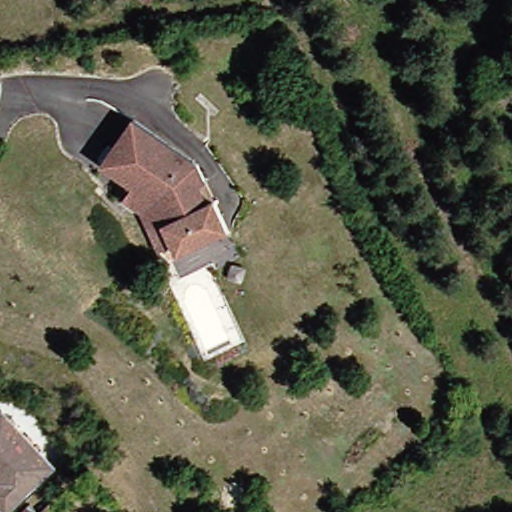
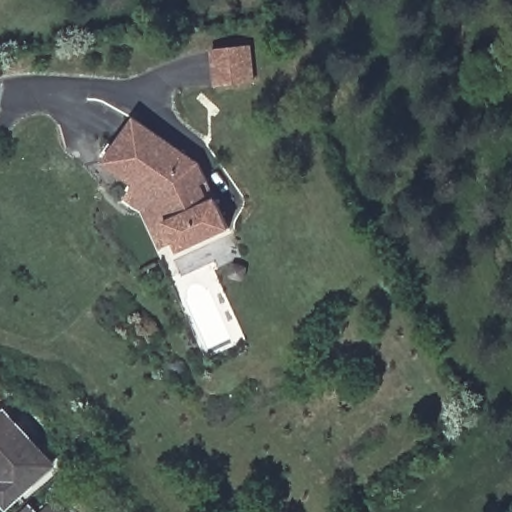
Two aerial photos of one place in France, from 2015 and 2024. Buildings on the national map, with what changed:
new [(255,85),(214,89),(210,51),(251,47),(255,85)]
unchanged [(130,210),(115,195),(126,185),(98,158),(136,119),(193,174),(199,193),(204,210),(212,242),(160,257),(155,241),(141,245),(130,210)]
unchanged [(3,512),(0,509),(0,492),(0,431),(5,426),(52,476),(10,512),(3,512)]
unchanged [(58,512),(50,512),(54,508),(58,512)]
unchanged [(35,512),(32,512),(34,510),(35,512)]

